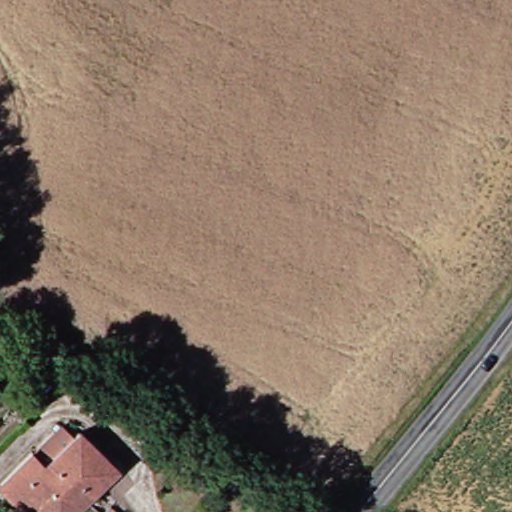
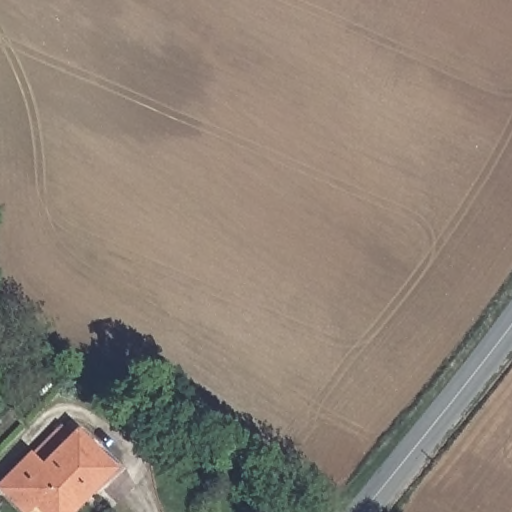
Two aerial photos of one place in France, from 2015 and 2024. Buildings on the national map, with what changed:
unchanged [(39,512),(20,512),(2,492),(37,460),(38,462),(66,434),(76,445),(84,440),(120,476),(94,502),(83,512),(41,512),(40,511),(39,512)]

